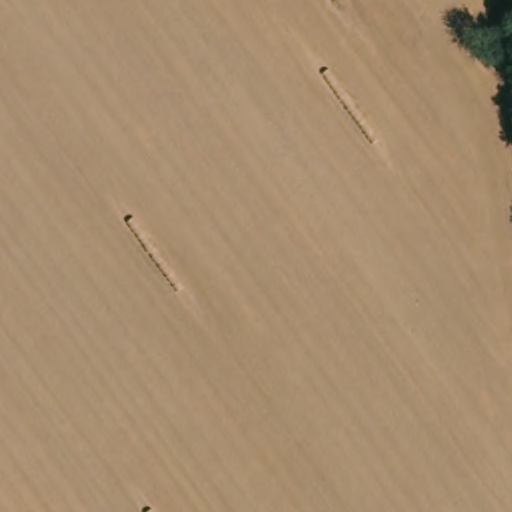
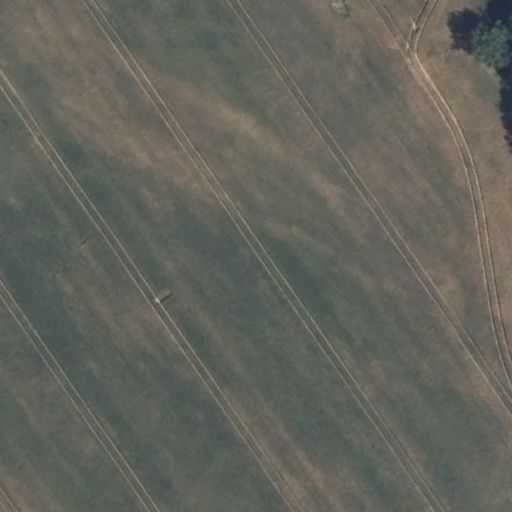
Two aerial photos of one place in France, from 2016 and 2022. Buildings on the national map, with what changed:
[]

